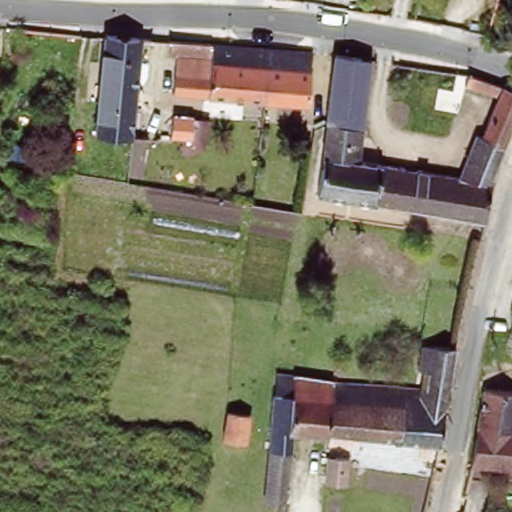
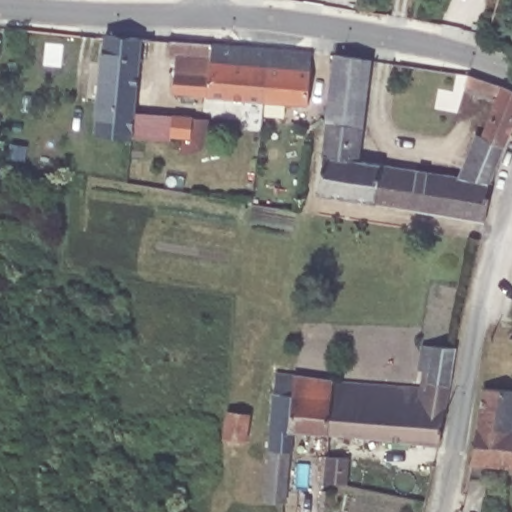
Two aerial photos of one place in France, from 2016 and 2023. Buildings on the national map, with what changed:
unchanged [(141,39),(134,112),(132,137),(131,139),(95,134),(105,37),(105,35),(141,39)]
unchanged [(170,71),(206,74),(207,57),(171,55),(171,41),(207,43),(263,47),(258,102),(167,94),(170,71)]
unchanged [(303,106),(258,102),(263,47),(306,52),(303,106)]
unchanged [(312,194),(323,124),(321,123),(330,54),(364,60),(352,162),(453,178),(472,135),(477,136),(493,97),(460,85),(465,75),(498,86),(512,91),(512,114),(488,172),(487,186),(480,223),(424,214),(312,194)]
unchanged [(134,112),(192,118),(190,137),(159,135),(158,139),(132,137),(134,112)]
unchanged [(293,430),(289,480),(287,502),(265,500),(276,373),(330,381),(427,388),(430,372),(418,371),(422,345),(455,347),(447,406),(438,445),(293,430)]
unchanged [(465,464),(477,387),(511,392),(509,409),(512,409),(512,468),(465,464)]
unchanged [(226,412),(250,415),(246,437),(252,437),(252,443),(224,439),(226,412)]
unchanged [(347,484),(327,482),(328,457),(350,458),(347,484)]

